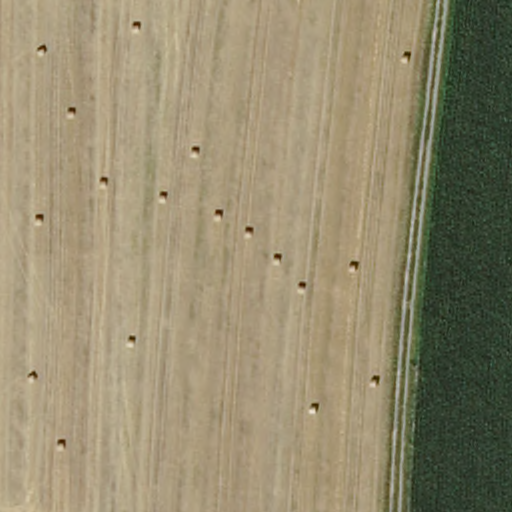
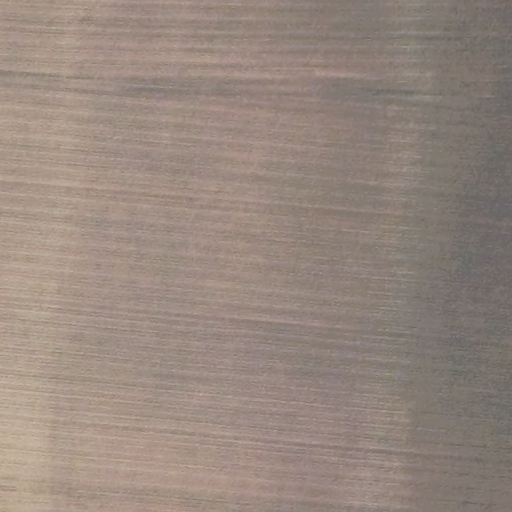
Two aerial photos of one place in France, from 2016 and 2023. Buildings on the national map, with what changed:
[]

